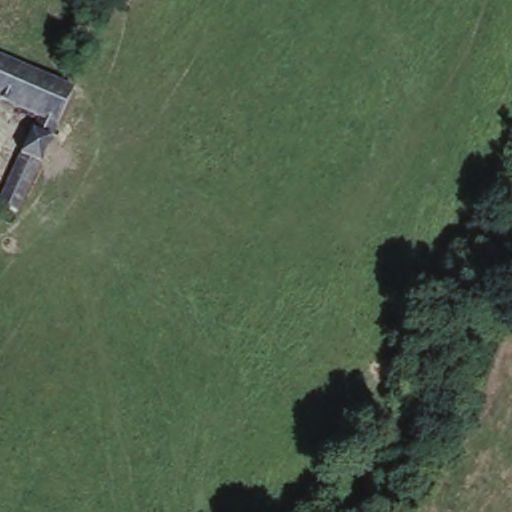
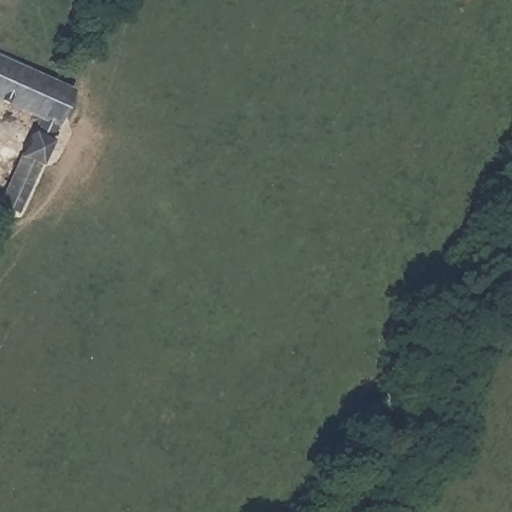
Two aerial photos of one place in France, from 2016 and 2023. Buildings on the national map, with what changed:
unchanged [(37,115),(0,97),(0,57),(66,89),(74,92),(50,145),(41,161),(16,217),(0,209),(0,200),(21,151),(28,136),(37,115)]

